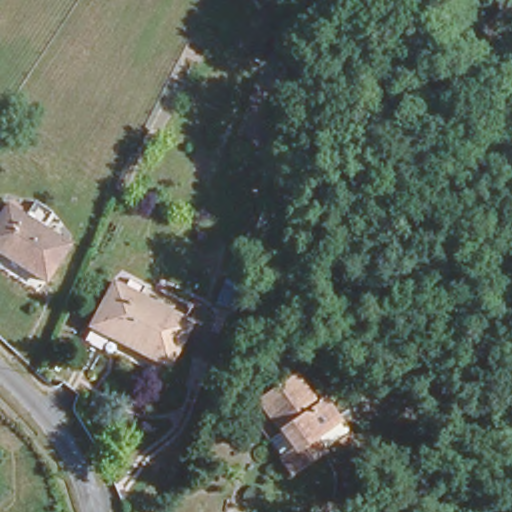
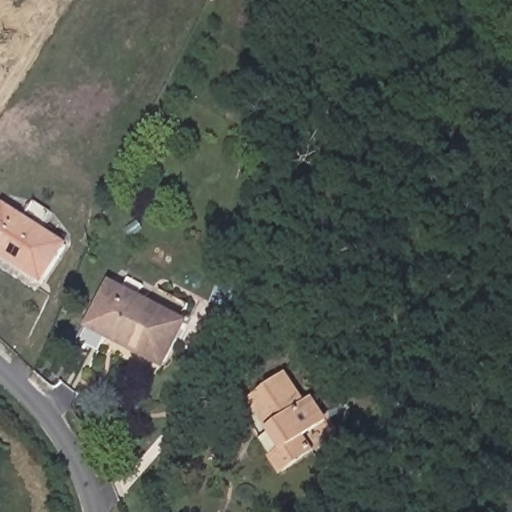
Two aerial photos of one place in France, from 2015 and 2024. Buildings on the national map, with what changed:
unchanged [(0,213),(7,203),(68,247),(41,283),(0,251),(0,213)]
unchanged [(107,337),(114,324),(95,311),(114,275),(186,315),(166,353),(160,365),(107,337)]
unchanged [(235,294),(229,315),(210,310),(219,288),(235,294)]
unchanged [(270,456),(281,447),(268,428),(275,419),(255,393),(290,367),(315,400),(322,396),(345,437),(285,474),(270,456)]

